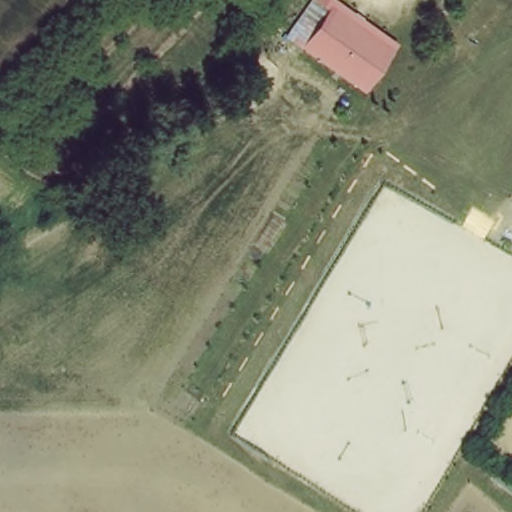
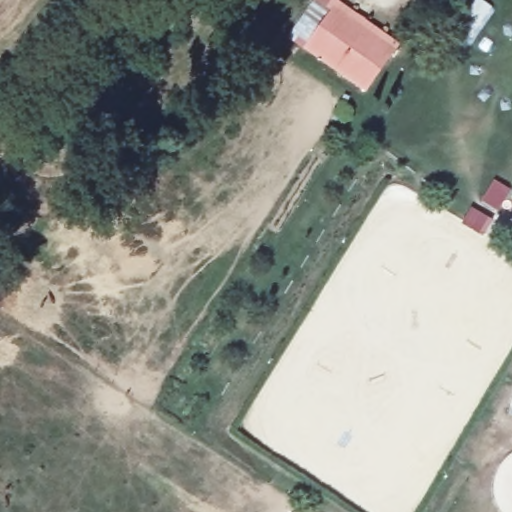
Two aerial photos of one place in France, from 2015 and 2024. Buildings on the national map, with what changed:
unchanged [(331,65),(297,44),(330,0),(332,0),(345,8),(341,14),(375,36),(386,43),(357,82),(331,65)]

